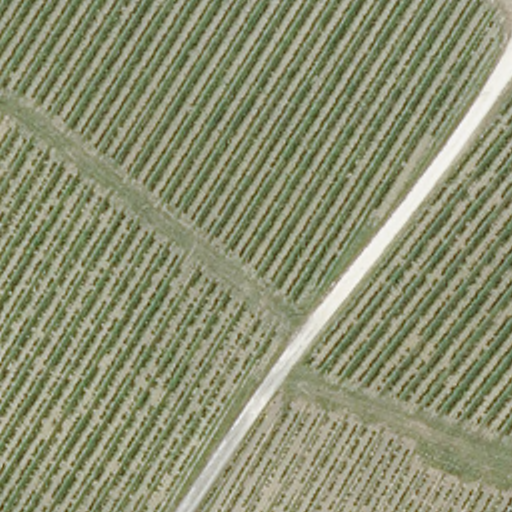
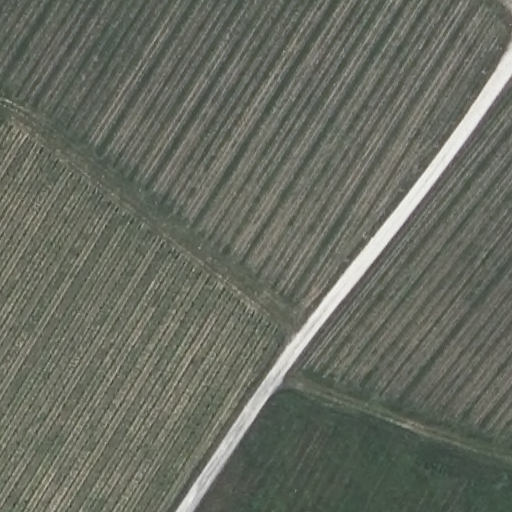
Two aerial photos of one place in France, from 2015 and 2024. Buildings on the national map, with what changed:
[]

